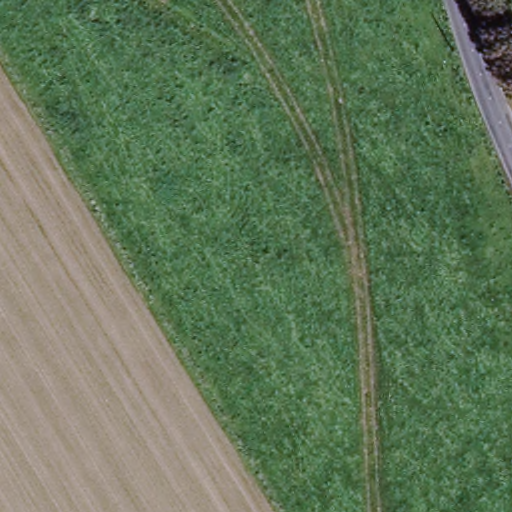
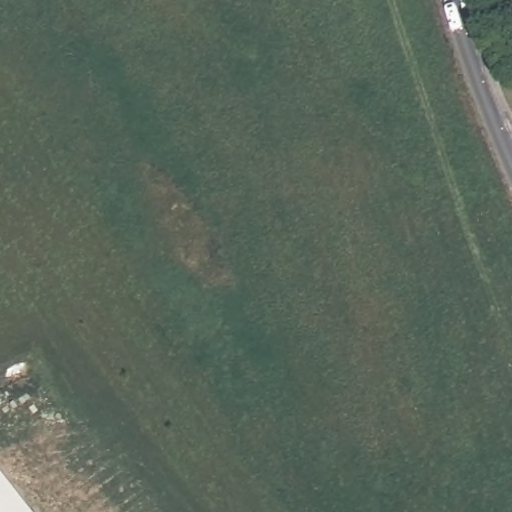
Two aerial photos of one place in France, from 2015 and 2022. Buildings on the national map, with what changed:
new [(0,512),(0,472),(32,512),(0,512)]

